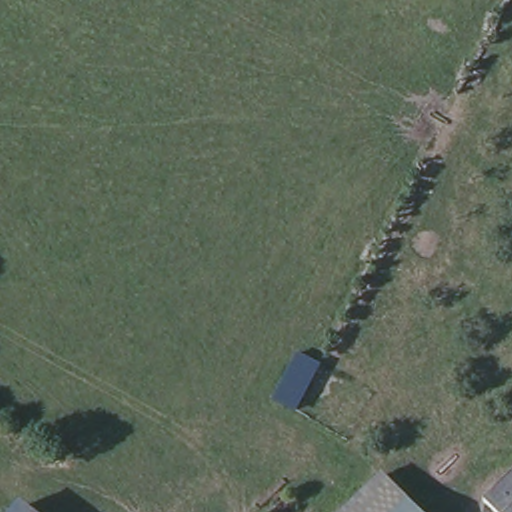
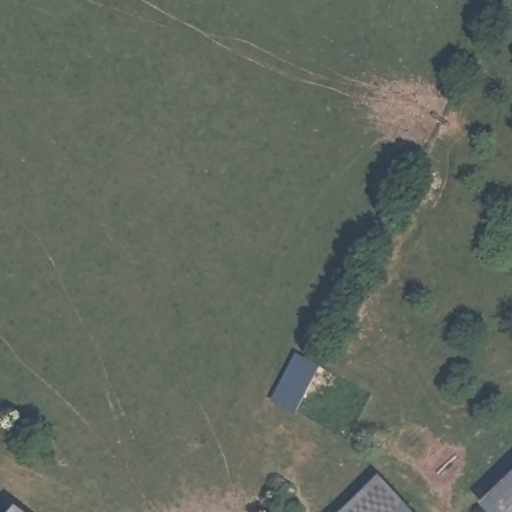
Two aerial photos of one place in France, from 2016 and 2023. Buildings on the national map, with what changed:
unchanged [(298,411),(272,401),(300,349),(324,364),(298,411)]
unchanged [(382,478),(415,512),(346,512),(382,478)]
unchanged [(512,478),(512,512),(494,512),(486,503),(512,478)]
unchanged [(28,512),(17,512),(22,507),(28,512)]

